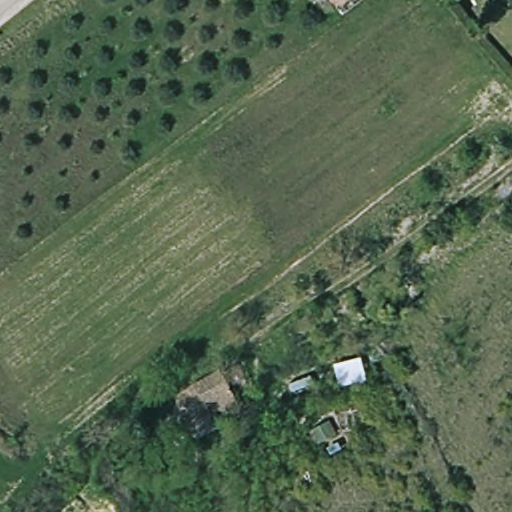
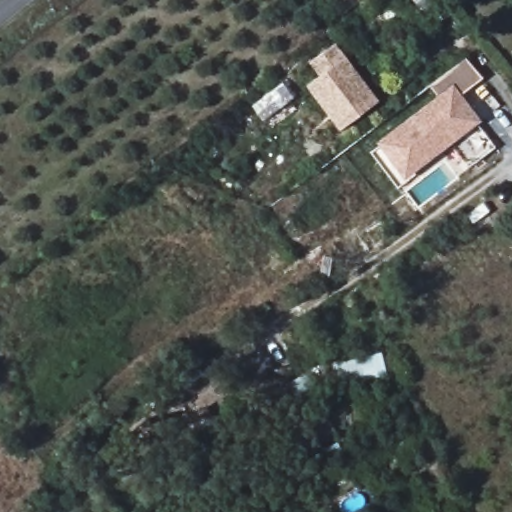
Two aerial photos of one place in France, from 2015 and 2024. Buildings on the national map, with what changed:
unchanged [(324,0),(341,0),(332,8),(324,0)]
new [(378,99),(344,125),(313,86),(325,77),(316,64),(338,46),(378,99)]
new [(484,79),(462,95),(481,122),(403,181),(375,143),(437,96),(430,86),(466,58),(484,79)]
new [(382,352),(389,375),(339,388),(332,365),(382,352)]
unchanged [(237,414),(223,421),(218,409),(203,416),(201,411),(183,420),(175,404),(188,394),(193,391),(220,376),(237,414)]
unchanged [(158,435),(151,423),(167,410),(173,424),(158,435)]

